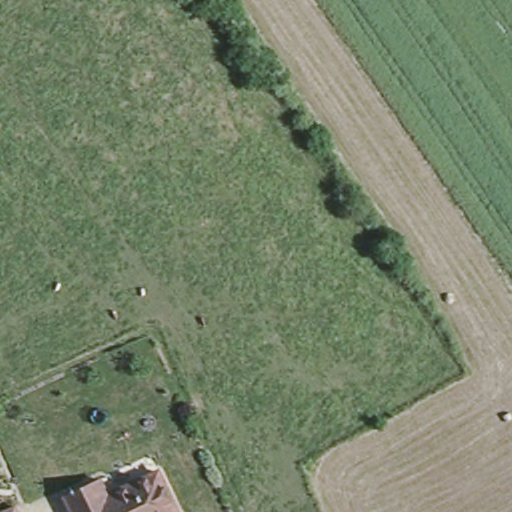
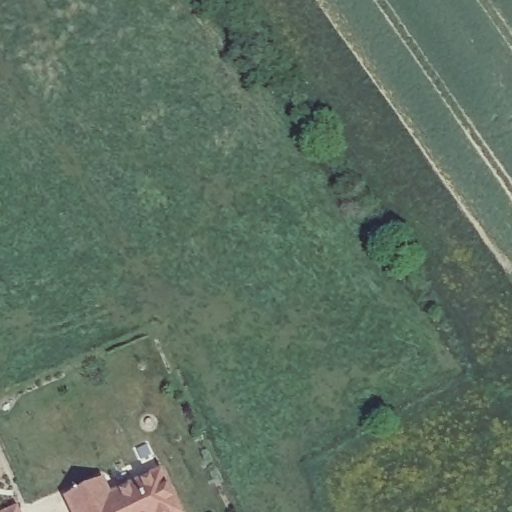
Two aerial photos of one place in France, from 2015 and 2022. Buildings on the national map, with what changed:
unchanged [(147,457),(155,475),(103,498),(96,482),(147,457)]
unchanged [(96,482),(103,498),(155,475),(172,512),(67,512),(60,498),(96,482)]
unchanged [(17,502),(22,512),(0,512),(0,510),(17,502)]

